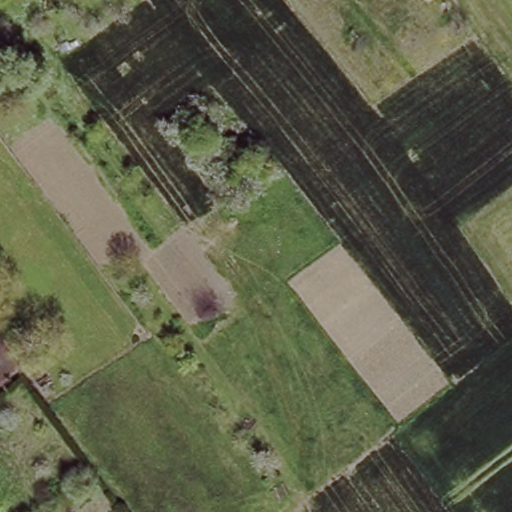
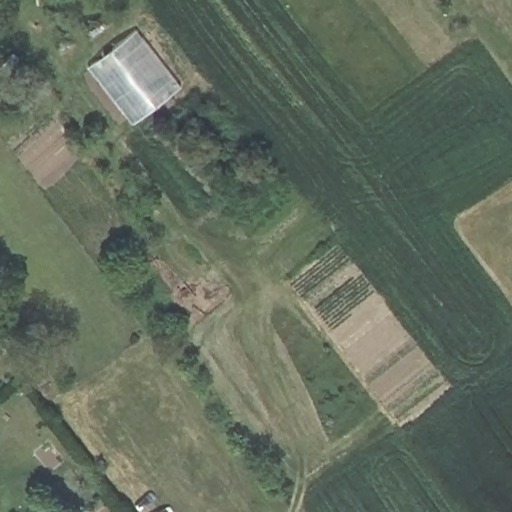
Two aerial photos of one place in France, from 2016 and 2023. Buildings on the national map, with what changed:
new [(137,30),(182,85),(133,127),(87,68),(137,30)]

